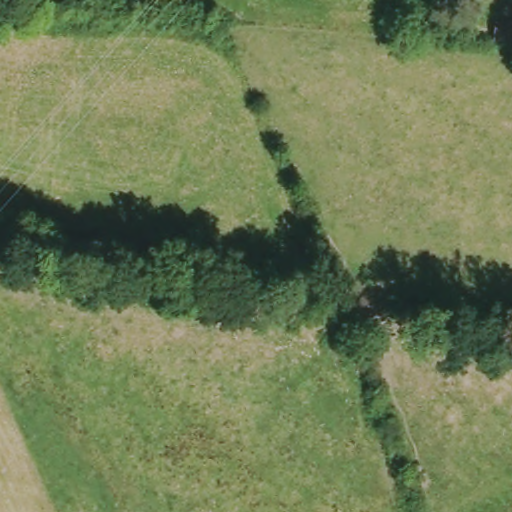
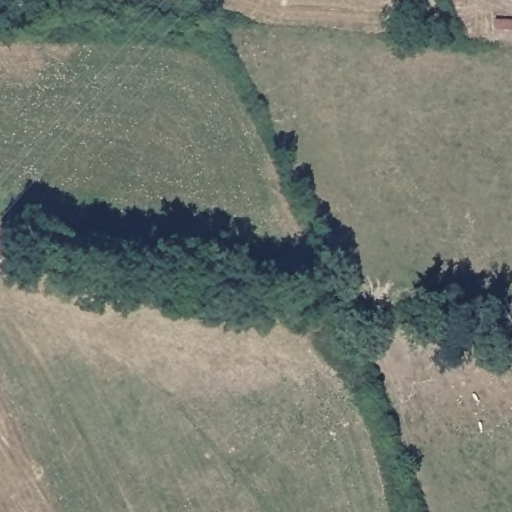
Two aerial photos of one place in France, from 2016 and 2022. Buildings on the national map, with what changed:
unchanged [(497,37),(498,17),(512,19),(512,39),(497,37)]

